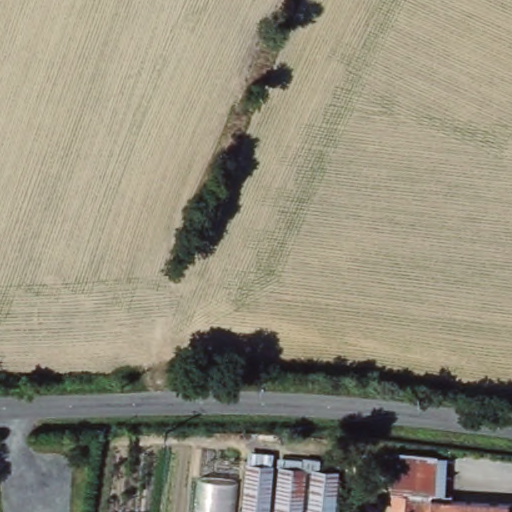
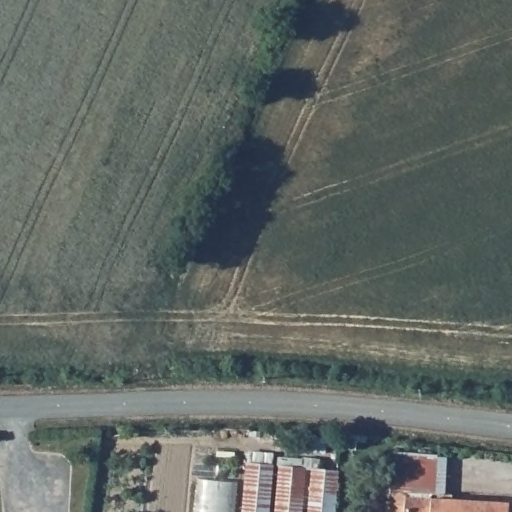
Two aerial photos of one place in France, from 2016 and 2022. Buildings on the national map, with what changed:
unchanged [(400,453),(451,457),(448,499),(397,496),(400,453)]
unchanged [(278,461),(273,512),(247,512),(252,458),(278,461)]
unchanged [(284,461),(310,463),(306,512),(280,512),(284,461)]
unchanged [(342,467),(339,512),(313,512),(317,464),(342,467)]
unchanged [(197,478),(236,482),(234,512),(193,512),(197,478)]
unchanged [(471,501),(512,503),(512,512),(396,512),(397,496),(448,499),(471,501)]

